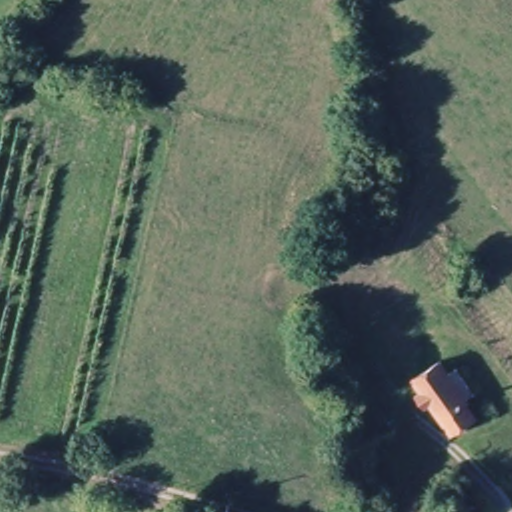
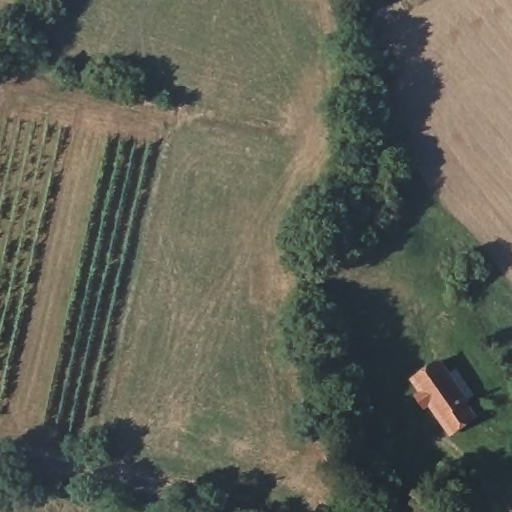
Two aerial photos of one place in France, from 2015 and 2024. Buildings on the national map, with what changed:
unchanged [(450,425),(421,386),(444,367),(473,404),(483,418),(460,438),(450,425)]

